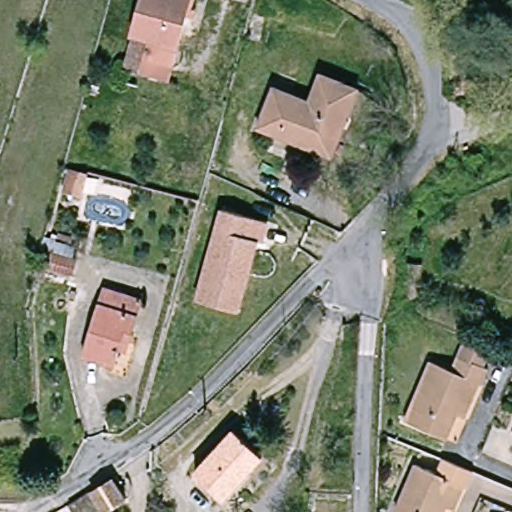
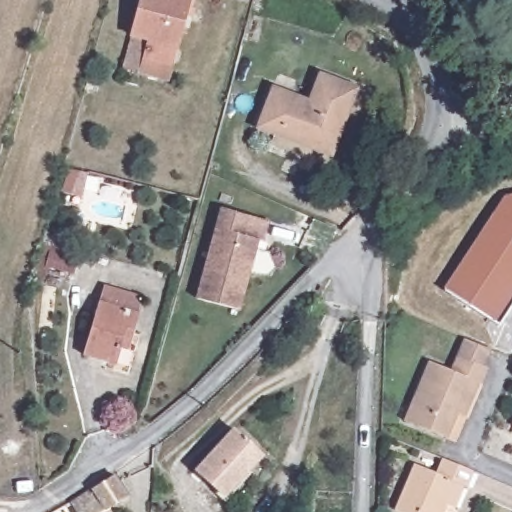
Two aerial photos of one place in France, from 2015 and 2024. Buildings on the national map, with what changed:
unchanged [(127,68),(137,39),(147,0),(198,0),(180,67),(155,60),(151,75),(127,68)]
unchanged [(363,86),(350,130),(340,126),(331,156),(264,134),(276,92),(298,99),(310,103),(320,72),(363,86)]
new [(500,325),(445,290),(505,196),(512,195),(512,305),(500,325)]
unchanged [(80,211),(73,234),(55,229),(61,206),(80,211)]
unchanged [(203,302),(225,211),(271,220),(266,242),(261,241),(254,274),(246,312),(203,302)]
demolished [(404,289),(406,262),(426,262),(422,289),(404,289)]
unchanged [(131,348),(124,346),(119,364),(88,355),(107,287),(145,297),(131,348)]
unchanged [(460,412),(449,439),(408,422),(433,363),(453,371),(460,355),(490,367),(483,385),(481,384),(467,416),(460,412)]
unchanged [(267,453),(231,495),(203,468),(238,428),(267,453)]
unchanged [(402,512),(399,511),(420,463),(439,472),(447,455),(479,467),(472,484),(468,482),(457,510),(449,506),(447,512),(402,512)]
unchanged [(114,472),(132,494),(120,505),(125,512),(85,512),(78,502),(114,472)]

